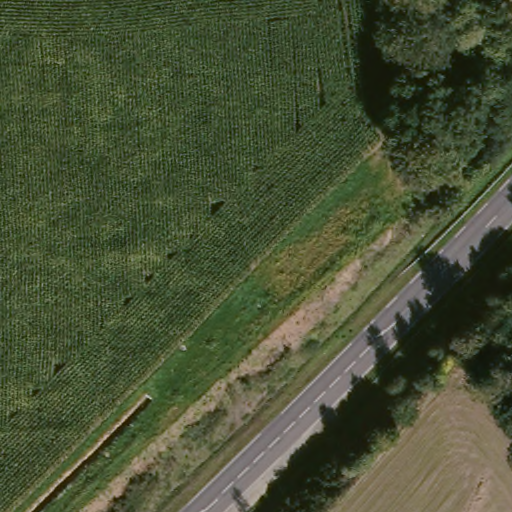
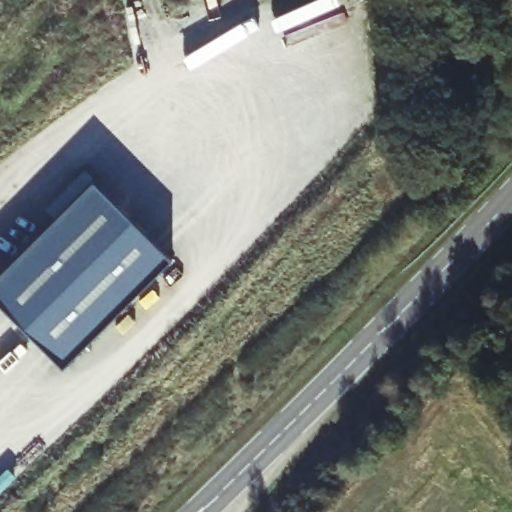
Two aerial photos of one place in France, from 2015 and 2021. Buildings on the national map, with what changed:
new [(93,186),(170,264),(62,371),(0,308),(0,277),(93,186)]

